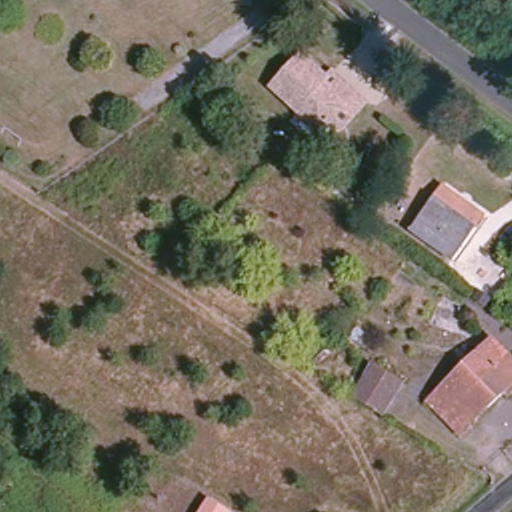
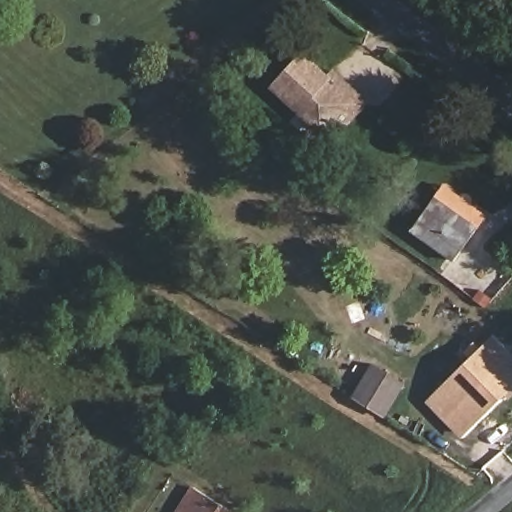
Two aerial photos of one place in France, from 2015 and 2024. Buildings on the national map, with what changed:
unchanged [(359,105),(332,133),(324,122),(315,133),(266,89),(296,59),(321,80),(325,74),(359,105)]
unchanged [(345,192),(357,176),(367,183),(357,200),(345,192)]
unchanged [(453,254),(418,229),(441,198),(477,226),(453,254)]
unchanged [(504,389),(463,427),(436,398),(494,342),(512,361),(512,394),(511,394),(504,389)]
unchanged [(389,414),(355,397),(373,362),(407,383),(389,414)]
unchanged [(210,497),(234,512),(200,512),(210,497)]

